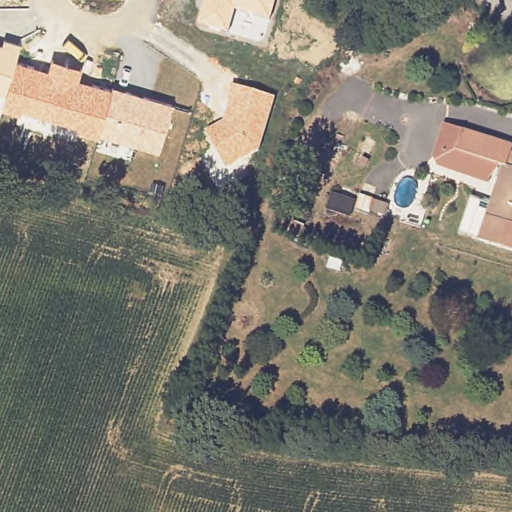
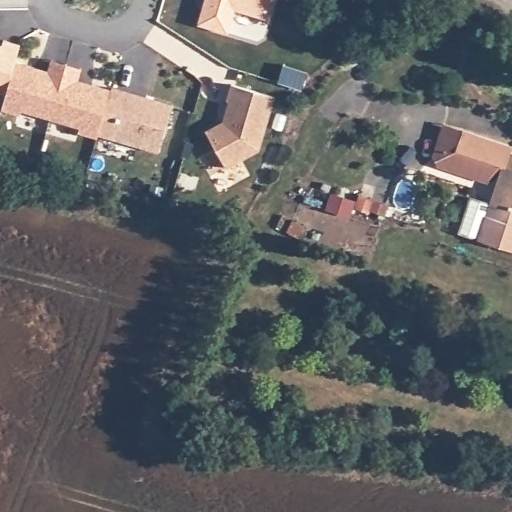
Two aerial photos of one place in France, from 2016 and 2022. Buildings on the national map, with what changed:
unchanged [(275,0),(271,16),(237,7),(229,33),(197,24),(203,0),(275,0)]
unchanged [(3,39),(19,42),(14,62),(46,70),(49,59),(82,67),(78,80),(171,104),(157,152),(97,134),(97,139),(77,134),(79,129),(17,108),(17,114),(0,109),(4,96),(0,95),(0,44),(1,45),(3,39)]
unchanged [(229,85),(274,97),(257,153),(226,167),(205,131),(222,121),(229,85)]
unchanged [(451,152),(457,131),(507,147),(505,151),(512,154),(512,253),(473,239),(497,167),(451,152)]

